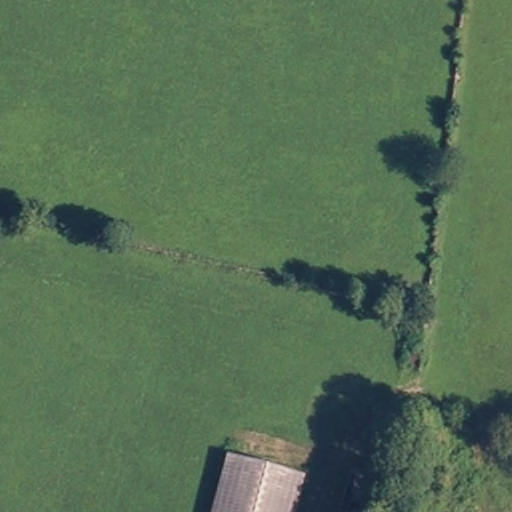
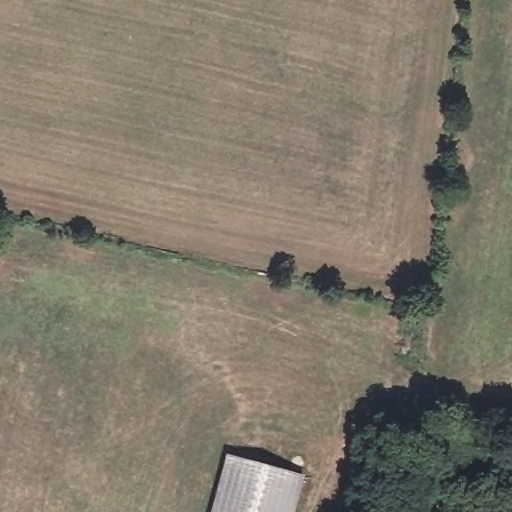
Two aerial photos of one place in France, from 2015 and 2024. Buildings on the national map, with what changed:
unchanged [(289,512),(225,512),(240,459),(300,475),(289,512)]

